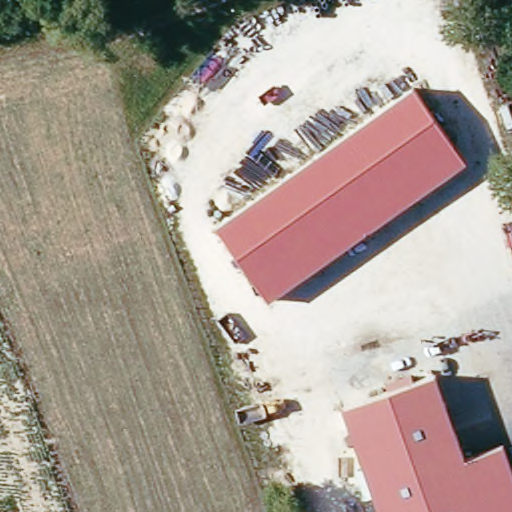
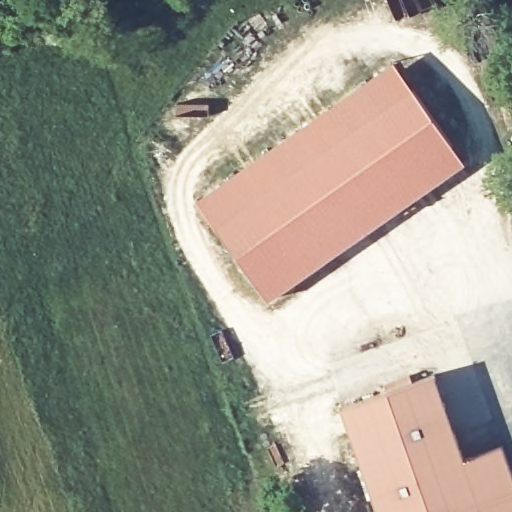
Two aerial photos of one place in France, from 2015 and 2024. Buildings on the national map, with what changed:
new [(216,226),(196,199),(393,61),(411,87),(216,226)]
unchanged [(466,162),(267,300),(216,226),(411,87),(466,162)]
unchanged [(466,458),(505,445),(512,464),(512,512),(378,512),(342,407),(437,374),(466,458)]

